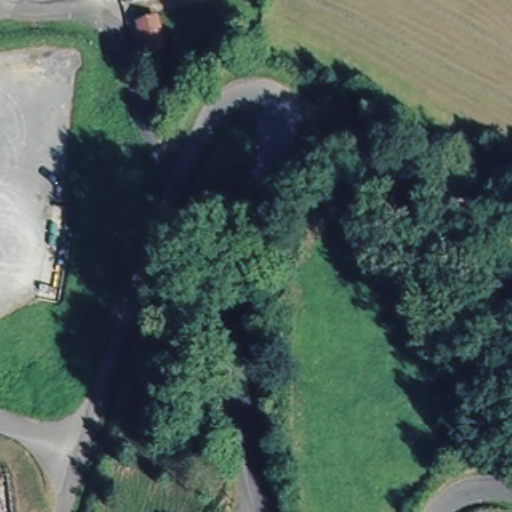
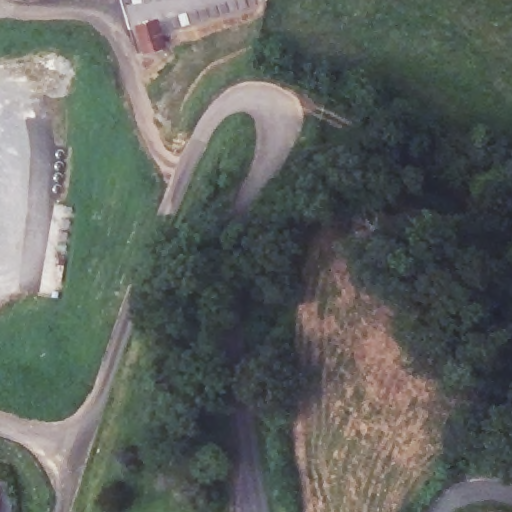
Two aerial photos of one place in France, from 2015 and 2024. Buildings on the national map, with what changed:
unchanged [(158,18),(168,38),(156,43),(147,22),(158,18)]

